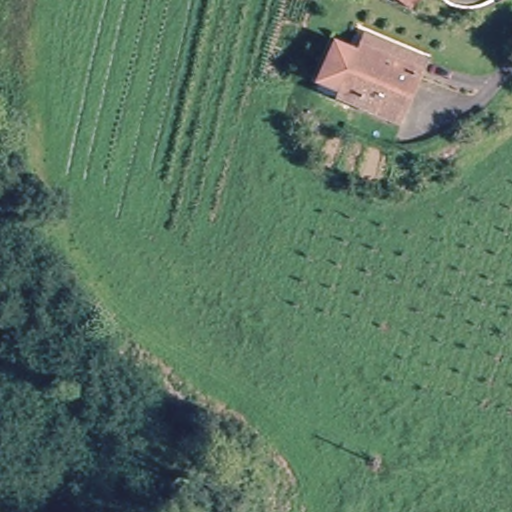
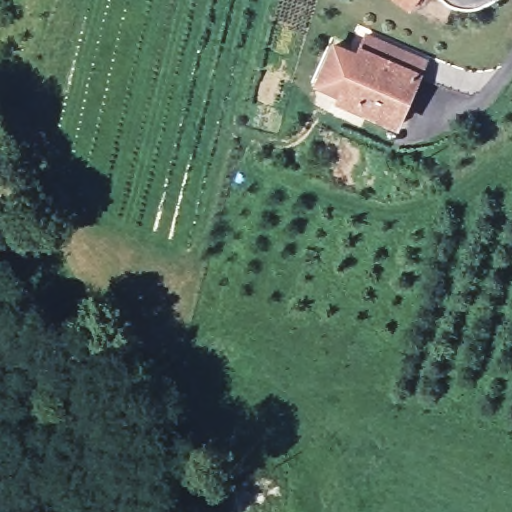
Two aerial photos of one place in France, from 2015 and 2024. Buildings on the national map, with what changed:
unchanged [(391,0),(419,0),(409,13),(391,0)]
unchanged [(357,113),(358,108),(333,106),(336,65),(361,66),(361,61),(362,46),(424,51),(423,66),(419,117),(357,113)]

